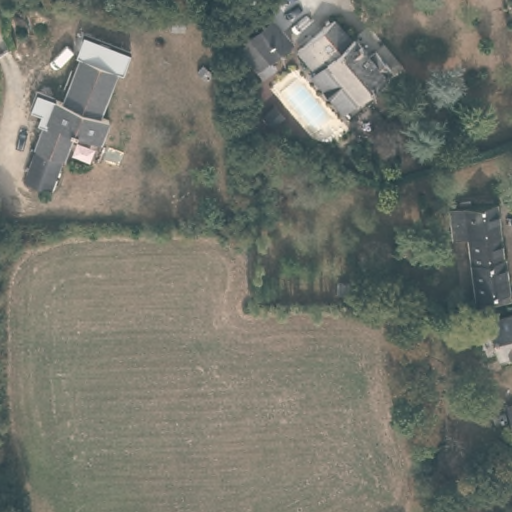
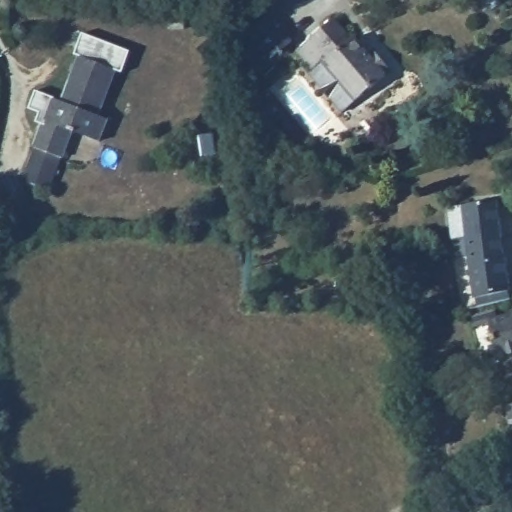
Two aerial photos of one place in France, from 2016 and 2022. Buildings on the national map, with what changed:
unchanged [(96,4),(90,2),(91,0),(98,0),(96,4)]
unchanged [(301,39),(280,58),(285,64),(274,73),(258,54),(266,47),(256,36),(260,32),(255,27),(270,15),(275,20),(281,15),(301,39)]
unchanged [(400,65),(393,70),(395,72),(351,109),(320,72),(325,68),(307,47),(343,16),(361,37),(363,35),(375,49),(372,51),(376,56),(385,48),(400,65)]
unchanged [(180,33),(165,33),(165,20),(180,20),(180,33)]
unchanged [(109,119),(100,141),(74,131),(63,158),(62,157),(50,189),(24,179),(36,148),(35,147),(54,98),(64,102),(81,56),(117,69),(100,115),(109,119)]
unchanged [(207,78),(200,85),(192,77),(199,70),(207,78)]
unchanged [(240,203),(250,203),(250,208),(240,208),(240,203)]
unchanged [(474,313),(465,242),(451,244),(447,213),(493,207),(499,260),(501,260),(506,295),(507,304),(474,313)]
unchanged [(495,361),(495,360),(481,364),(482,366),(478,367),(469,330),(473,329),(471,323),(492,316),(494,322),(512,318),(512,356),(495,361)]
unchanged [(508,435),(497,406),(512,402),(512,434),(508,435)]

